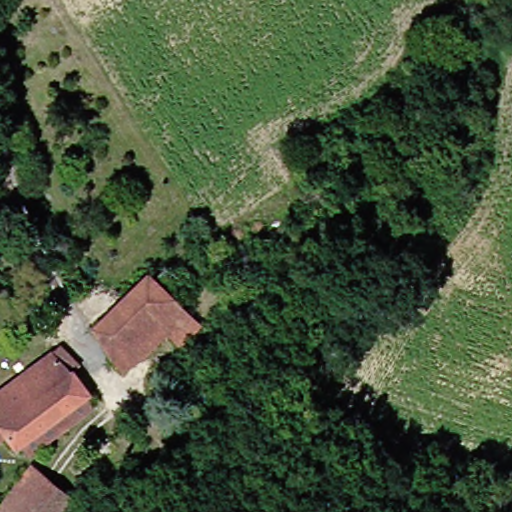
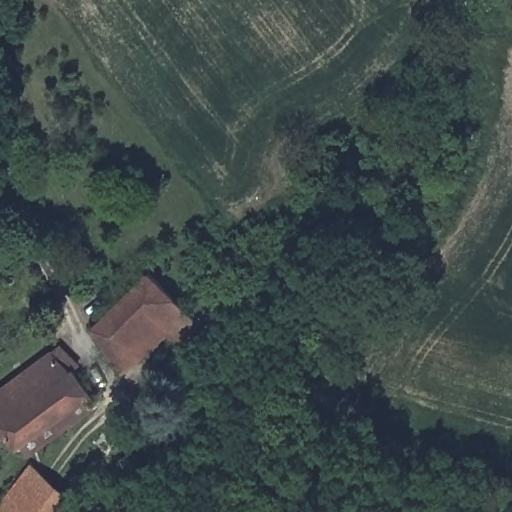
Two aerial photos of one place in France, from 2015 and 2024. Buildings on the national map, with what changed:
unchanged [(122,308),(160,268),(212,322),(192,342),(177,328),(160,347),(122,308)]
unchanged [(122,308),(160,347),(139,367),(100,329),(122,308)]
unchanged [(92,385),(25,440),(0,410),(0,383),(55,339),(92,385)]
unchanged [(71,487),(47,511),(46,512),(5,512),(2,509),(50,462),(71,487)]
unchanged [(89,512),(47,512),(47,511),(71,487),(92,508),(89,512)]

